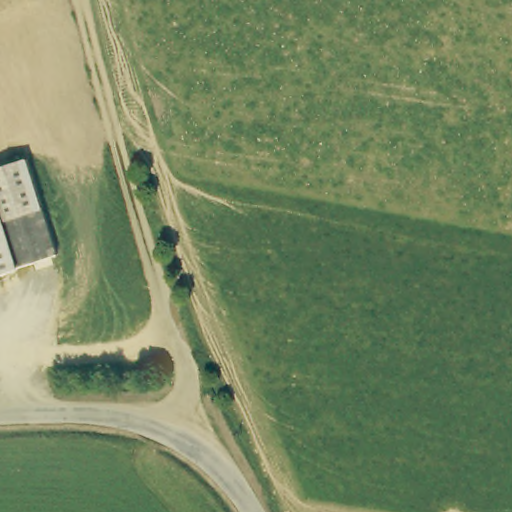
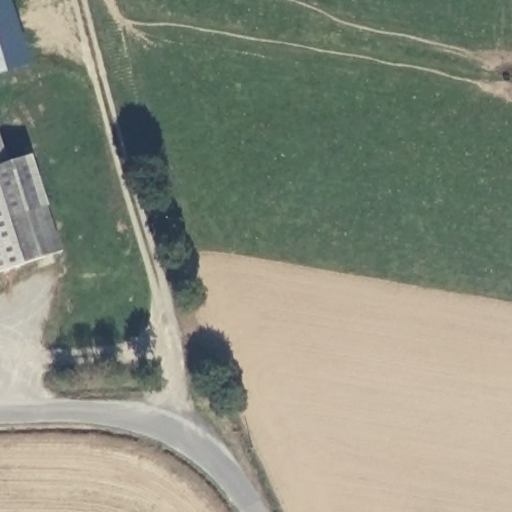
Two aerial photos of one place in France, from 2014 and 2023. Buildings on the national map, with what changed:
new [(8,0),(28,65),(0,74),(0,0),(8,0)]
new [(4,165),(0,166),(0,150),(4,165)]
unchanged [(0,273),(0,166),(29,156),(61,253),(0,273)]

